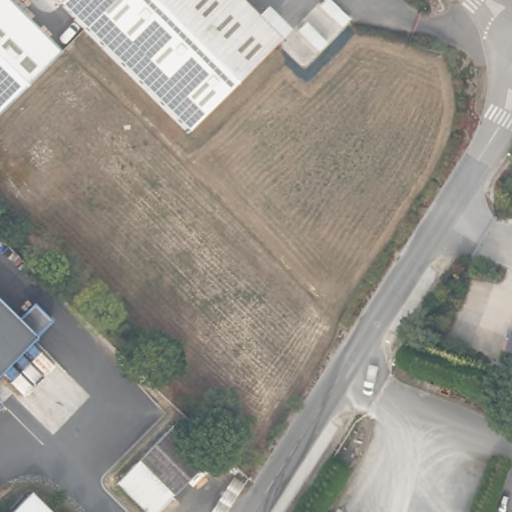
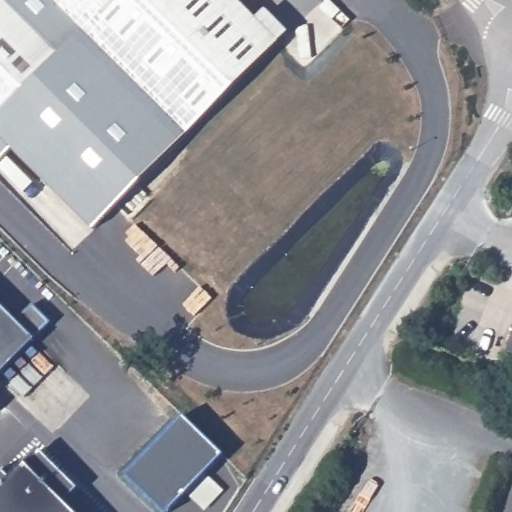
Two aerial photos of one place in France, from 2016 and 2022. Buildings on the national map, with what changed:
unchanged [(0,114),(0,0),(4,0),(58,55),(0,114)]
new [(4,0),(52,0),(187,133),(92,231),(10,149),(0,159),(0,114),(58,55),(4,0)]
unchanged [(277,42),(187,133),(52,0),(235,0),(277,42)]
unchanged [(33,306),(47,323),(29,336),(32,340),(0,373),(0,306),(13,318),(33,306)]
unchanged [(506,347),(512,332),(512,349),(506,347)]
new [(222,456),(170,512),(161,512),(125,477),(182,416),(222,456)]
demolished [(166,495),(151,512),(141,512),(116,488),(121,483),(129,475),(130,474),(165,438),(201,472),(172,501),(166,495)]
new [(12,473),(24,462),(38,448),(78,489),(64,503),(73,512),(0,512),(0,468),(2,466),(12,473)]
demolished [(13,512),(30,494),(47,512),(13,512)]

